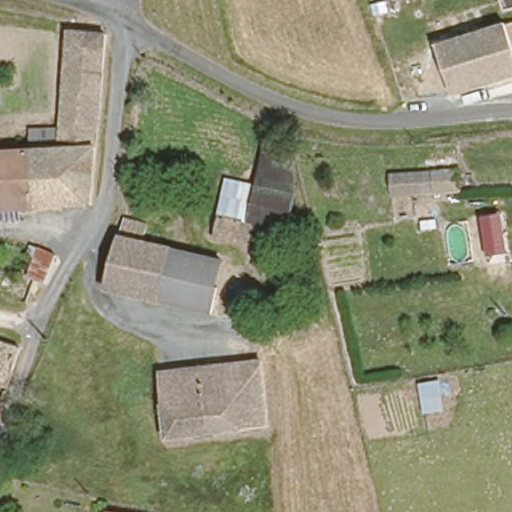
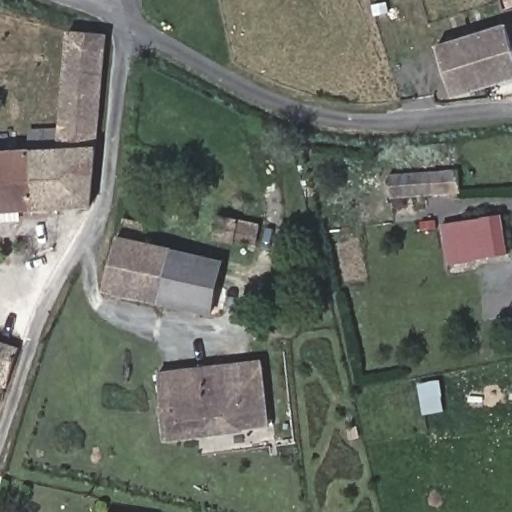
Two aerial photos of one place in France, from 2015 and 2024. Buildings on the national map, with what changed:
unchanged [(106,93),(66,89),(73,28),(109,32),(106,93)]
unchanged [(441,50),(457,46),(512,33),(512,81),(453,97),(441,50)]
unchanged [(60,148),(66,89),(106,93),(100,145),(60,148)]
unchanged [(297,152),(301,175),(276,267),(255,262),(256,242),(215,235),(226,178),(255,183),(265,144),(297,152)]
unchanged [(0,151),(60,148),(100,145),(93,204),(0,210),(0,151)]
unchanged [(460,172),(461,194),(392,197),(390,175),(460,172)]
new [(509,253),(448,264),(441,224),(502,213),(509,253)]
unchanged [(142,241),(165,248),(175,251),(161,302),(145,297),(103,285),(120,226),(124,214),(149,222),(142,241)]
unchanged [(161,302),(175,251),(225,262),(214,314),(161,302)]
unchanged [(50,258),(40,281),(28,275),(36,253),(50,258)]
unchanged [(0,388),(0,341),(26,350),(11,391),(0,388)]
unchanged [(264,358),(273,426),(174,438),(164,370),(264,358)]

